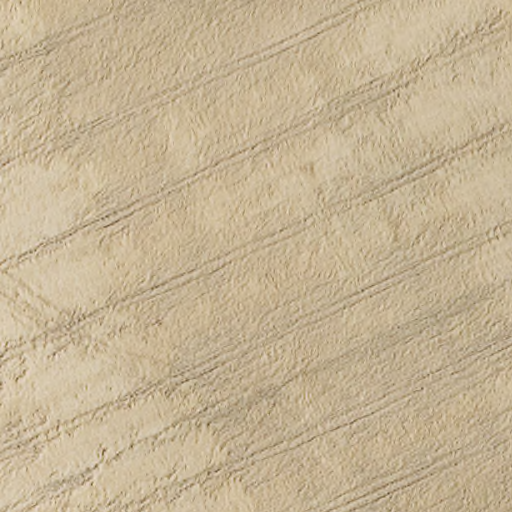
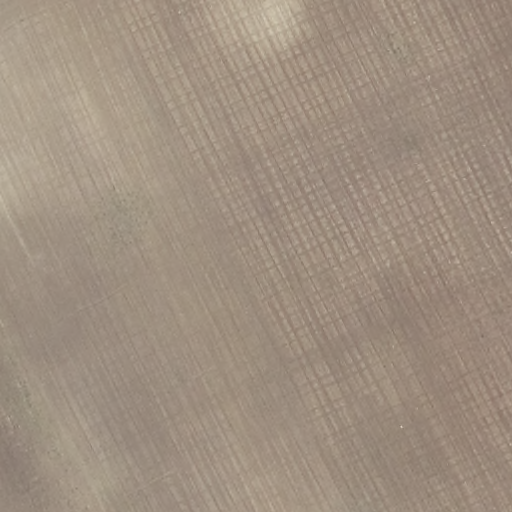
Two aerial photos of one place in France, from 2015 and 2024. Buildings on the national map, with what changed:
[]

